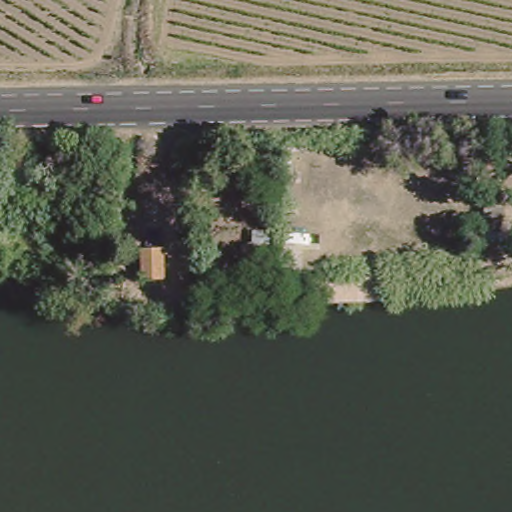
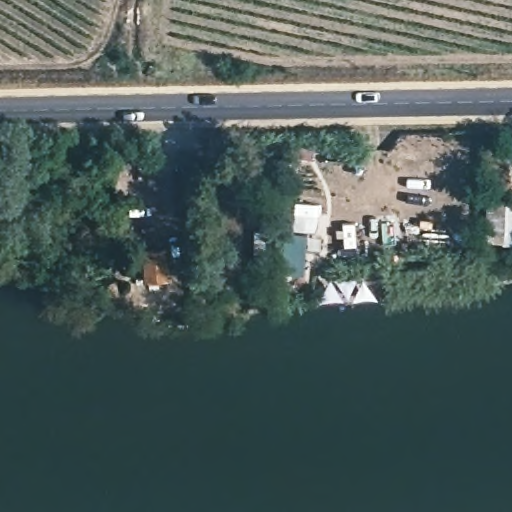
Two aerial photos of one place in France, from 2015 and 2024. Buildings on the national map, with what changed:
unchanged [(486,231),(487,209),(488,200),(503,201),(502,210),(501,232),(486,231)]
unchanged [(252,267),(252,229),(271,229),(272,267),(252,267)]
unchanged [(166,275),(144,276),(143,244),(165,243),(166,275)]

